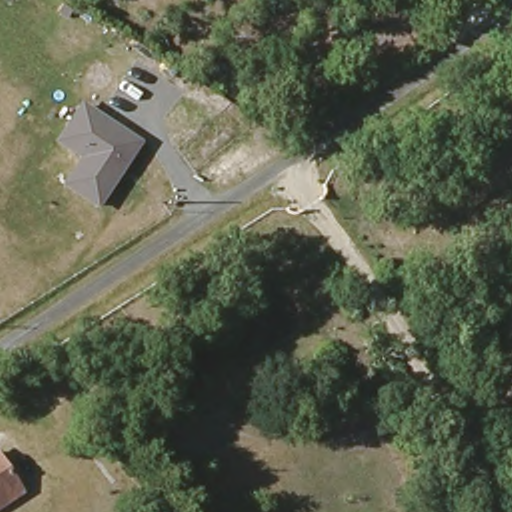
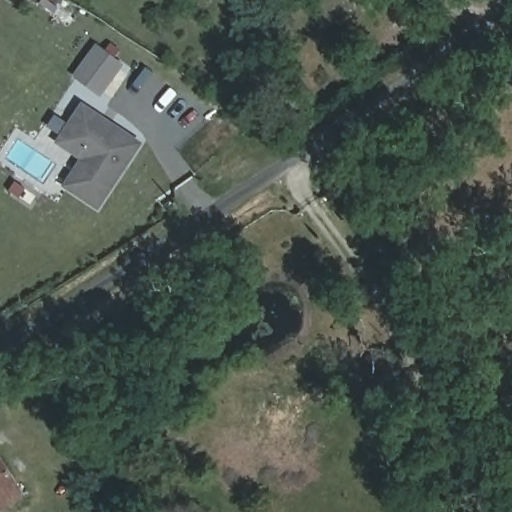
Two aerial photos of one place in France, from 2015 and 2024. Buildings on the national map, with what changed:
new [(99,49),(122,66),(100,94),(77,77),(99,49)]
unchanged [(97,210),(60,186),(78,159),(51,142),(81,99),(143,141),(97,210)]
unchanged [(0,503),(0,465),(18,492),(0,503)]

